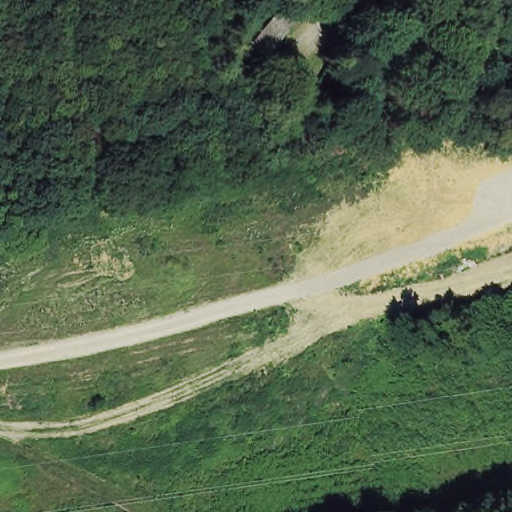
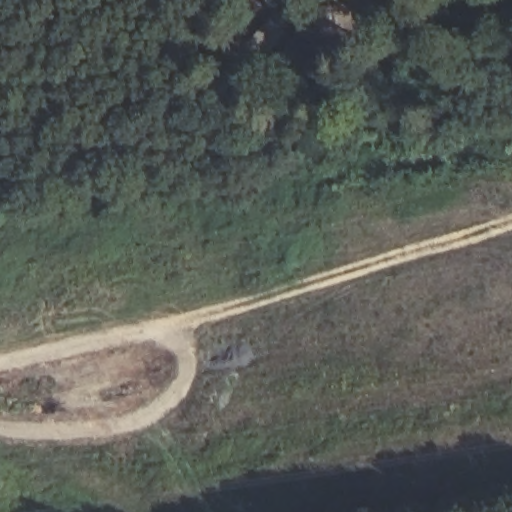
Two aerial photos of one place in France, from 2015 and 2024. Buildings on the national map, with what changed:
unchanged [(288,31),(253,70),(239,59),(273,18),(288,31)]

